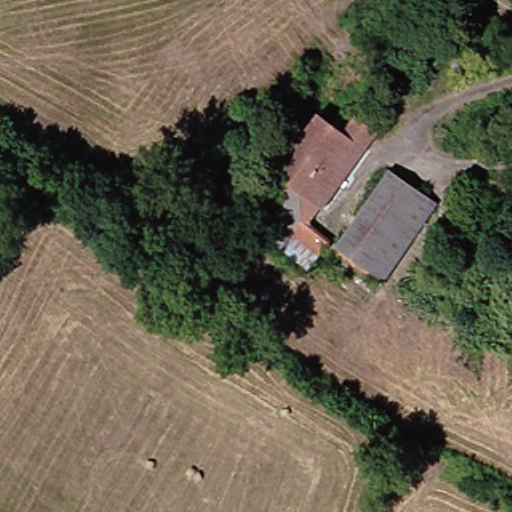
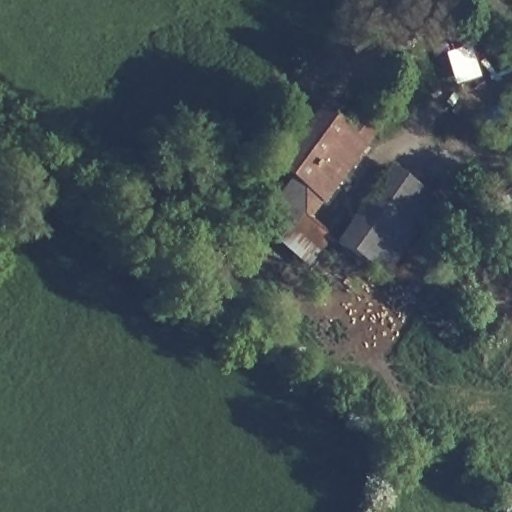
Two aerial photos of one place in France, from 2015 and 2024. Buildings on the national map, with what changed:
unchanged [(317,207),(311,202),(299,221),(327,242),(319,254),(261,212),(283,181),(270,172),(312,114),(325,122),(333,113),(358,131),(350,141),(359,148),(317,207)]
unchanged [(434,201),(414,232),(361,198),(383,166),(434,201)]
unchanged [(414,232),(383,281),(330,245),(361,198),(414,232)]

